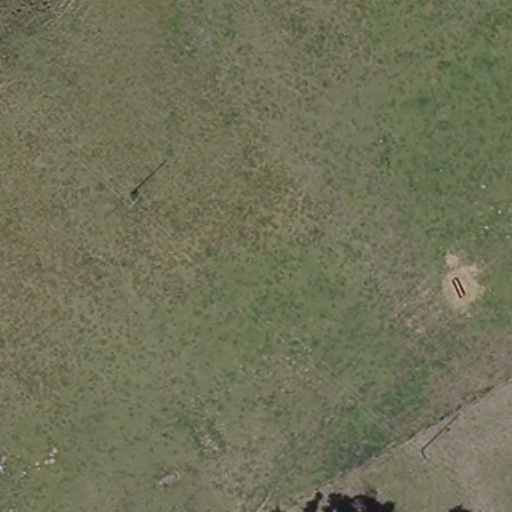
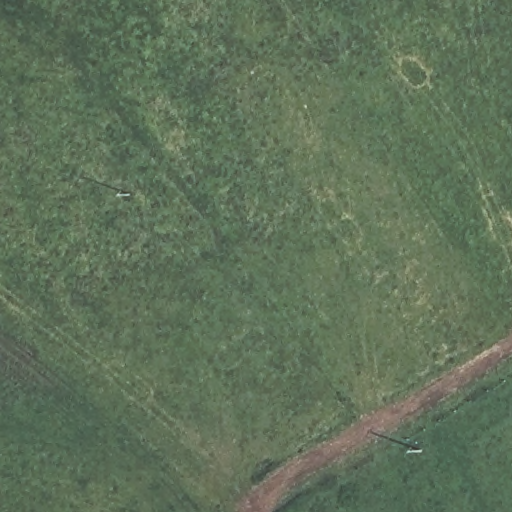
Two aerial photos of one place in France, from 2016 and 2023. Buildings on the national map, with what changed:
[]

